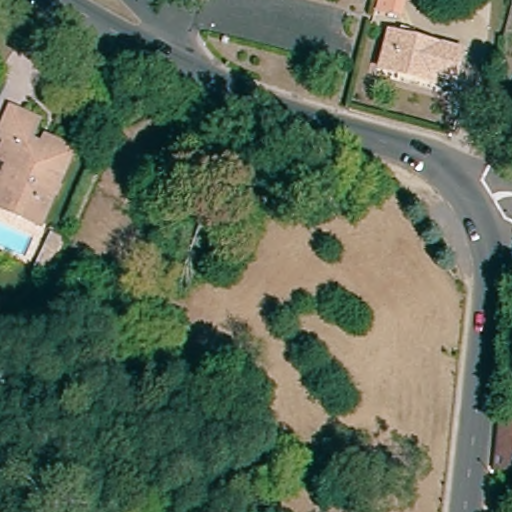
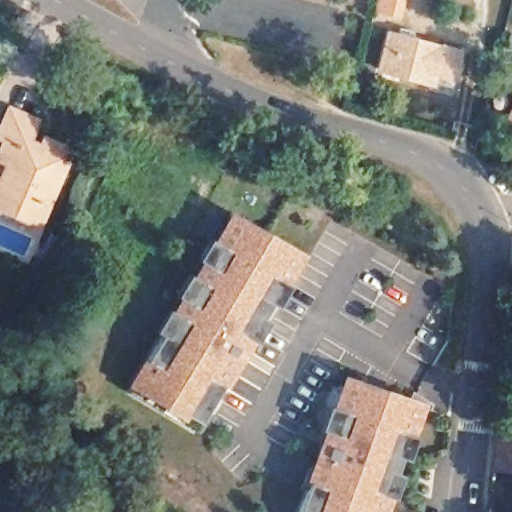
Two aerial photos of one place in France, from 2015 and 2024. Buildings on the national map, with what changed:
unchanged [(397,25),(377,19),(382,0),(403,0),(397,25)]
unchanged [(389,37),(440,49),(437,64),(442,65),(436,89),(379,76),(389,37)]
unchanged [(512,109),(512,126),(507,124),(512,109)]
unchanged [(0,207),(0,158),(3,159),(10,143),(2,139),(14,111),(42,122),(33,143),(45,148),(49,139),(77,151),(74,156),(45,226),(0,207)]
new [(242,359),(198,432),(132,392),(187,300),(193,303),(205,283),(199,280),(209,263),(215,266),(227,247),(221,244),(238,216),(304,256),(288,284),(276,304),(266,320),(254,340),(242,359)]
unchanged [(50,276),(39,270),(56,236),(67,242),(50,276)]
new [(412,437),(404,460),(389,499),(384,512),(301,512),(323,454),(331,432),(339,411),(350,380),(423,407),(412,437)]
unchanged [(512,420),(512,472),(496,470),(501,418),(512,420)]

